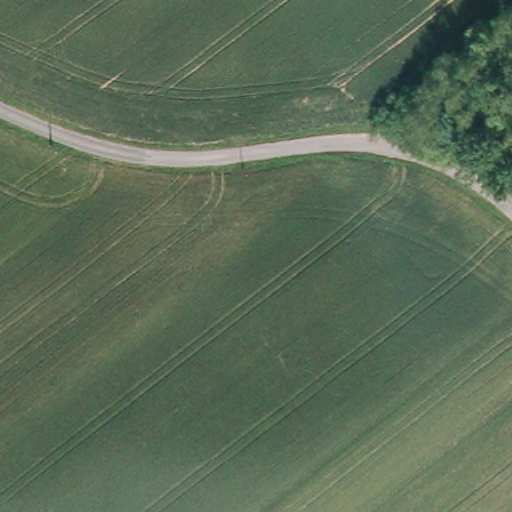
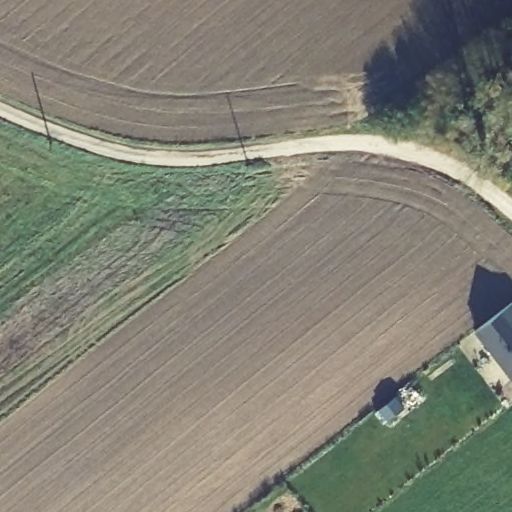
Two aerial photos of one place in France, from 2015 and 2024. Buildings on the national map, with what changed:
new [(476,330),(512,302),(512,376),(476,330)]

